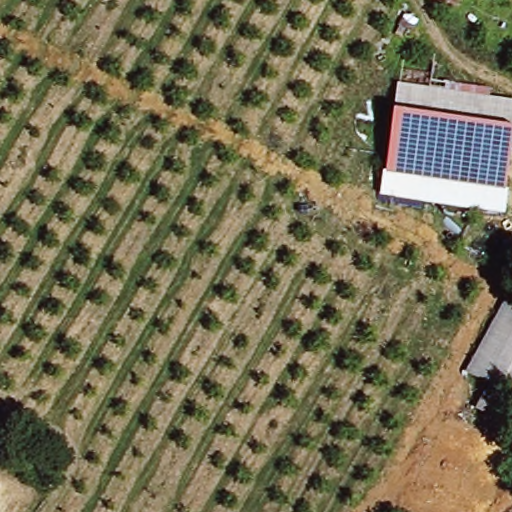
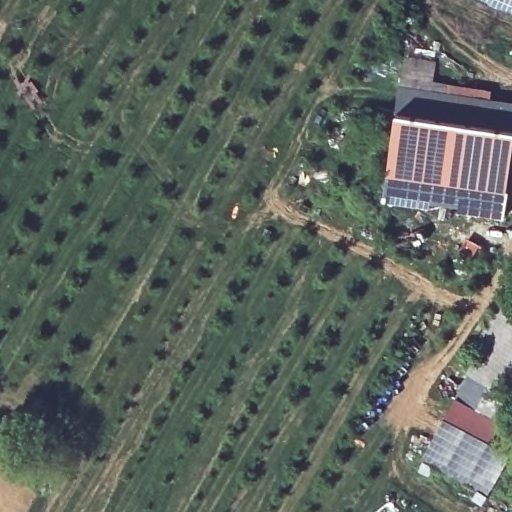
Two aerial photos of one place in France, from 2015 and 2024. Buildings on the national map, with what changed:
unchanged [(393,110),(401,84),(512,99),(512,169),(506,213),(382,195),(393,110)]
unchanged [(508,419),(484,406),(496,385),(491,382),(475,374),(512,304),(512,410),(508,419)]
new [(467,373),(488,385),(477,406),(501,416),(491,437),(443,415),(467,373)]
new [(443,415),(491,437),(512,446),(512,453),(481,505),(469,496),(472,492),(436,470),(437,468),(434,466),(437,461),(424,454),(443,415)]

